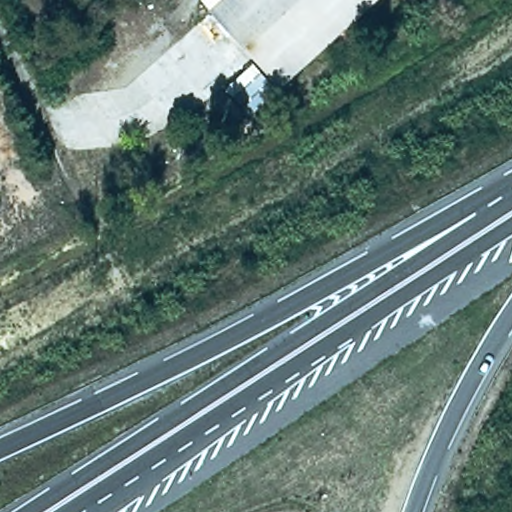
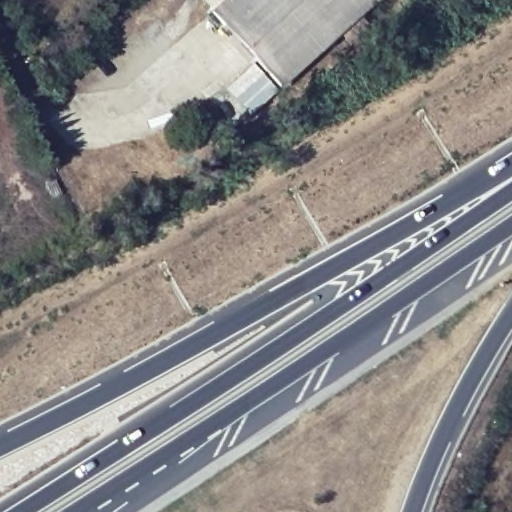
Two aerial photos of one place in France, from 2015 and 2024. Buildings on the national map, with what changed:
unchanged [(209,10),(219,0),(367,0),(279,82),(209,10)]

